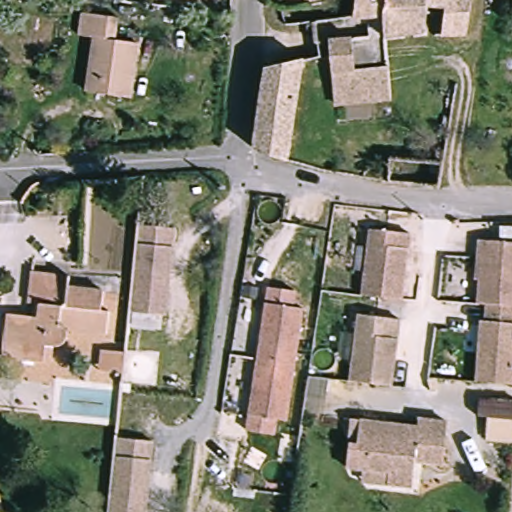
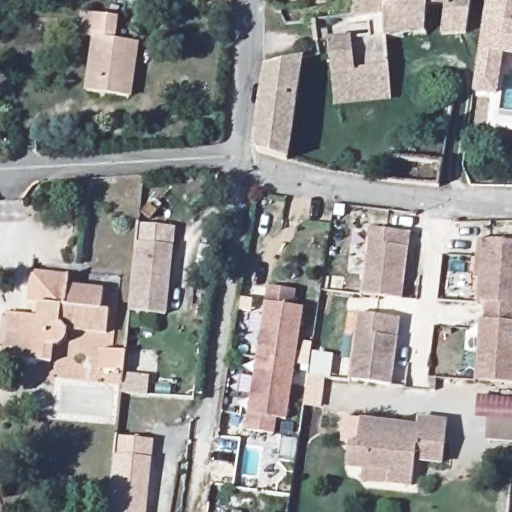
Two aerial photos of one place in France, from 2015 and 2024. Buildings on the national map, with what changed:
unchanged [(448,36),(446,7),(431,7),(430,35),(390,37),(373,38),(373,34),(373,22),(358,22),(360,0),(476,0),(471,35),(448,36)]
new [(503,59),(500,74),(496,100),(473,96),(477,70),(489,0),(512,0),(512,59),(503,59)]
unchanged [(120,17),(117,40),(135,42),(129,95),(88,90),(96,37),(79,35),(81,12),(120,17)]
unchanged [(357,35),(373,34),(373,38),(390,37),(392,100),(340,105),(334,37),(357,35)]
unchanged [(267,150),(260,145),(271,63),(305,55),(293,156),(267,150)]
unchanged [(142,222),(178,225),(169,312),(134,309),(142,222)]
unchanged [(372,225),(413,230),(403,296),(362,290),(372,225)]
unchanged [(512,239),(512,303),(489,302),(480,302),(482,256),(477,256),(477,238),(512,239)]
unchanged [(69,331),(66,335),(61,337),(56,337),(54,356),(52,358),(24,356),(27,331),(9,330),(10,311),(39,314),(40,301),(27,300),(30,267),(69,271),(68,282),(102,286),(115,288),(111,331),(104,330),(70,327),(69,331)]
unchanged [(270,286),(297,290),(295,306),(305,307),(297,362),(260,357),(270,286)]
unchanged [(512,303),(512,382),(483,381),(484,319),(488,319),(489,302),(512,303)]
unchanged [(351,375),(360,312),(403,318),(394,381),(394,382),(351,375)]
unchanged [(98,371),(100,351),(126,353),(125,373),(98,371)]
unchanged [(260,357),(297,362),(289,418),(279,417),(277,433),(249,429),(260,357)]
new [(150,376),(148,397),(121,393),(123,373),(125,373),(125,372),(150,376)]
unchanged [(512,403),(512,442),(491,441),(494,421),(484,421),(483,402),(512,403)]
unchanged [(351,437),(358,438),(362,417),(389,421),(420,425),(421,417),(450,421),(445,460),(417,457),(415,482),(387,481),(388,469),(348,465),(351,446),(351,437)]
unchanged [(118,437),(154,440),(147,512),(111,512),(118,437)]

